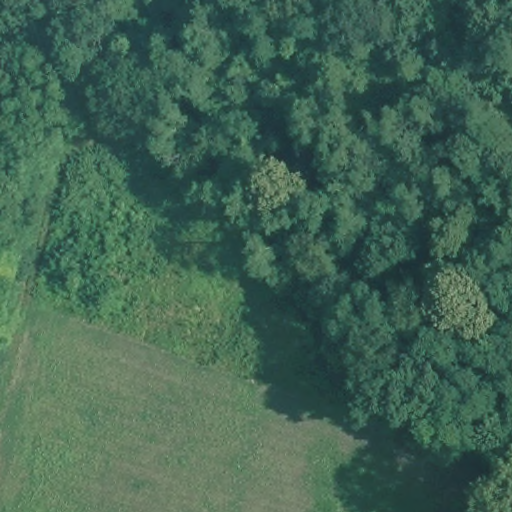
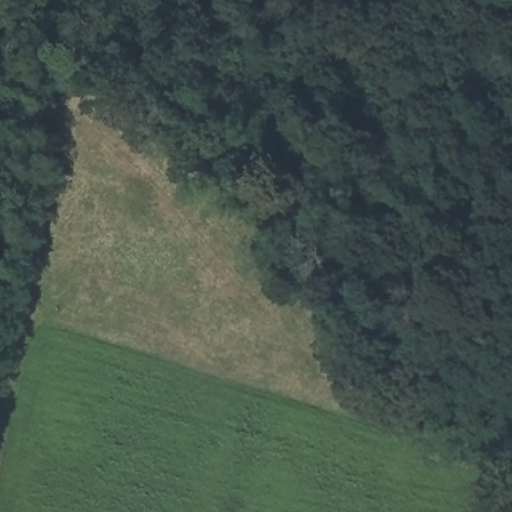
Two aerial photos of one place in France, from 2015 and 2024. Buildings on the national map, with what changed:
[]

